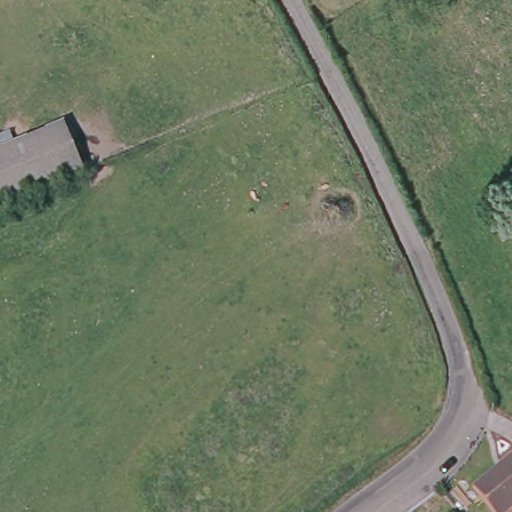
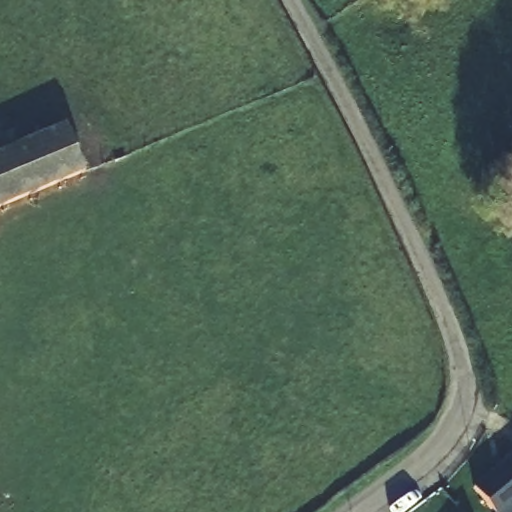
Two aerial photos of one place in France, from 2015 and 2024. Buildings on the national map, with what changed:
unchanged [(0,205),(0,153),(62,128),(80,172),(0,205)]
unchanged [(507,512),(494,512),(475,488),(512,458),(512,508),(507,512)]

